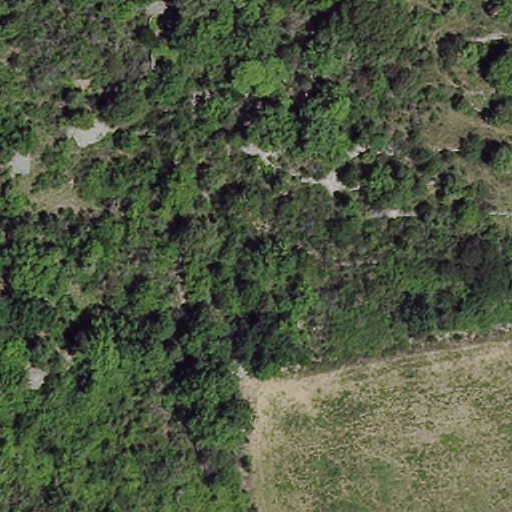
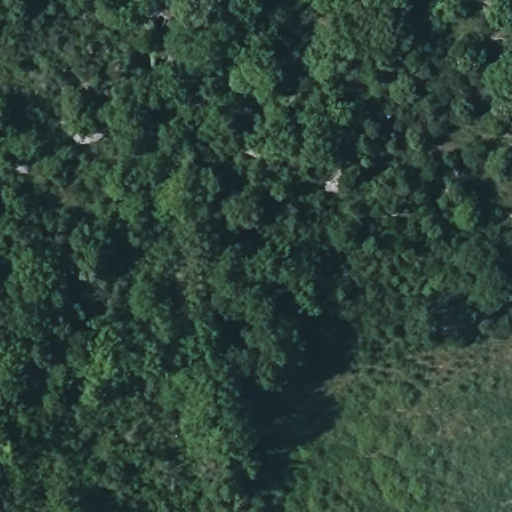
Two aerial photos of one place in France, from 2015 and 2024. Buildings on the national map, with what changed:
[]

